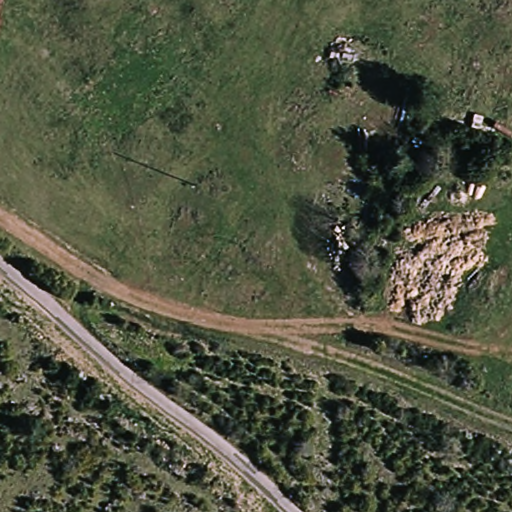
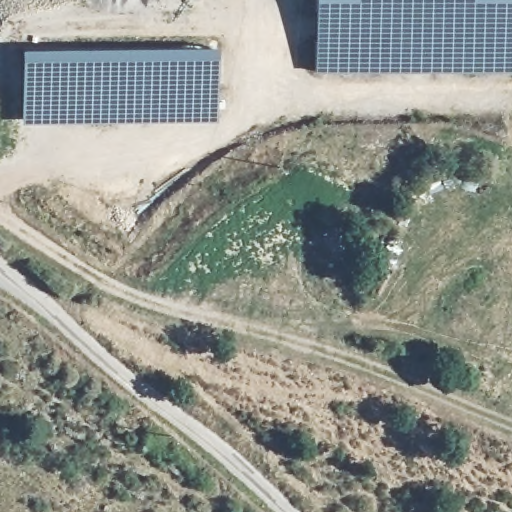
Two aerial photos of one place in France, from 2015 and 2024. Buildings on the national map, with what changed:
new [(316,74),(315,0),(512,0),(512,74),(316,74)]
new [(208,47),(208,51),(215,51),(215,122),(23,123),(23,47),(208,47)]

